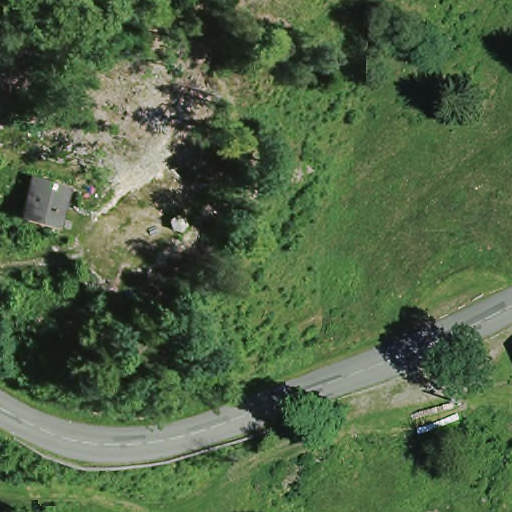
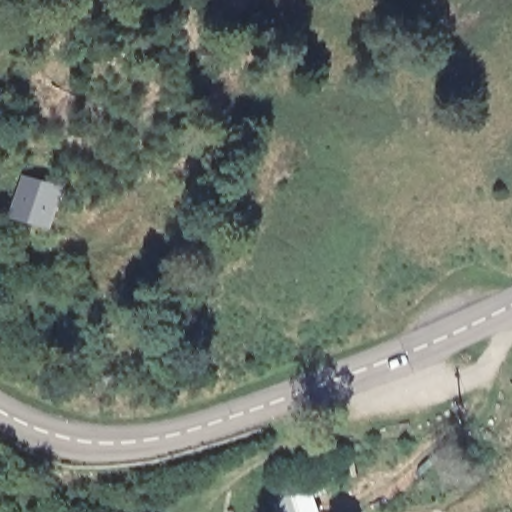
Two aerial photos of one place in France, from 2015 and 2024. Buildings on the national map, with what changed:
unchanged [(57,193),(50,222),(24,215),(25,209),(32,187),(57,193)]

